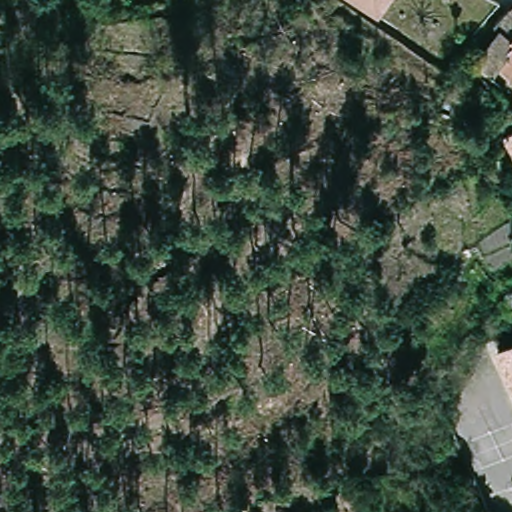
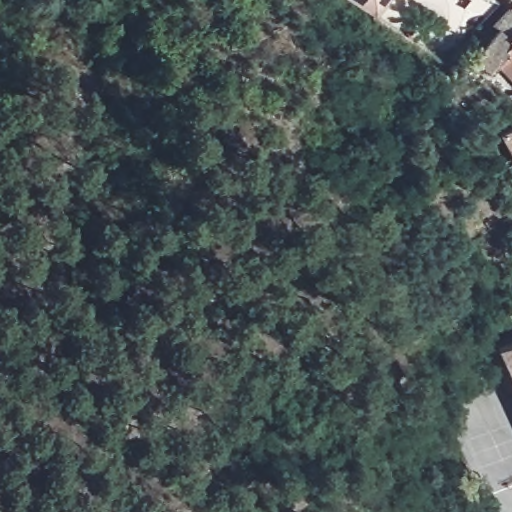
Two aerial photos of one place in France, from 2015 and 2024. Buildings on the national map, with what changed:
unchanged [(380,15),(358,0),(389,0),(380,15)]
unchanged [(477,58),(498,28),(493,22),(512,2),(512,52),(492,73),(477,58)]
unchanged [(512,125),(512,155),(500,131),(512,125)]
unchanged [(512,341),(512,375),(499,347),(512,341)]
unchanged [(499,347),(512,375),(512,396),(491,351),(499,347)]

